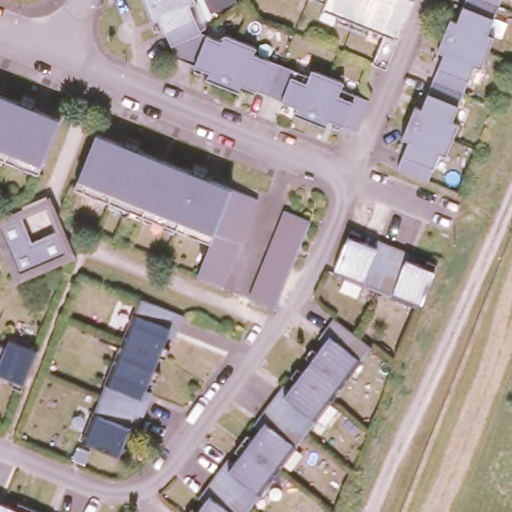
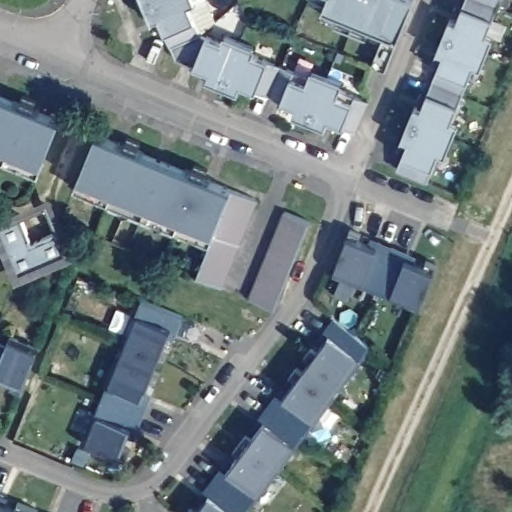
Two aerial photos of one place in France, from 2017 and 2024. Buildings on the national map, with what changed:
unchanged [(193,13),(202,39),(217,44),(219,40),(257,56),(255,61),(300,77),(302,73),(336,87),(334,92),(361,102),(351,127),(324,119),(320,123),(285,109),(287,103),(240,85),(239,91),(209,80),(211,75),(182,62),(165,22),(160,23),(152,0),(192,0),(195,8),(193,13)]
unchanged [(367,57),(386,12),(356,0),(410,0),(386,64),(367,57)]
unchanged [(505,19),(494,50),(484,47),(463,99),(473,104),(461,136),(450,134),(440,157),(412,146),(421,122),(412,117),(426,84),(434,87),(454,37),(447,33),(460,0),(465,0),(468,1),(468,0),(502,0),(496,15),(505,19)]
unchanged [(20,104),(23,98),(37,104),(35,110),(60,121),(39,175),(0,159),(0,96),(20,104)]
unchanged [(97,130),(125,141),(128,132),(142,140),(140,146),(192,166),(195,160),(210,165),(207,172),(259,194),(225,283),(200,275),(212,240),(77,185),(97,130)]
unchanged [(315,215),(280,304),(253,293),(289,203),(315,215)]
unchanged [(35,244),(62,233),(74,258),(22,281),(0,234),(0,227),(22,217),(35,244)]
unchanged [(381,292),(337,275),(353,230),(363,232),(360,241),(380,248),(382,241),(397,247),(381,292)]
unchanged [(381,292),(397,247),(412,252),(409,260),(427,267),(430,260),(439,263),(422,307),(381,292)]
unchanged [(124,343),(142,298),(187,316),(182,332),(173,330),(167,346),(175,349),(169,360),(162,357),(124,343)]
unchanged [(311,362),(305,357),(312,347),(319,352),(330,338),(324,333),(335,319),(374,348),(344,387),(311,362)]
unchanged [(10,342),(15,332),(44,342),(27,387),(17,383),(20,377),(3,371),(0,378),(0,338),(10,342)]
unchanged [(157,370),(165,372),(160,385),(153,382),(146,398),(155,402),(149,417),(102,398),(124,343),(162,357),(157,370)]
unchanged [(280,391),(285,395),(296,382),(290,376),(297,367),(303,372),(311,362),(344,387),(307,436),(268,406),(280,391)]
unchanged [(149,417),(142,431),(134,428),(129,445),(135,448),(130,460),(84,443),(102,398),(149,417)]
unchanged [(307,436),(278,473),(240,443),(245,435),(252,439),(262,424),(257,420),(268,406),(307,436)]
unchanged [(223,466),(228,470),(239,455),(234,450),(240,443),(278,473),(250,510),(212,480),(223,466)]
unchanged [(250,510),(248,512),(197,512),(207,497),(202,492),(212,480),(250,510)]
unchanged [(29,512),(0,512),(0,492),(5,494),(3,502),(20,508),(24,502),(32,505),(29,512)]
unchanged [(42,509),(41,512),(29,512),(32,505),(42,509)]
unchanged [(191,508),(196,512),(188,512),(191,508)]

